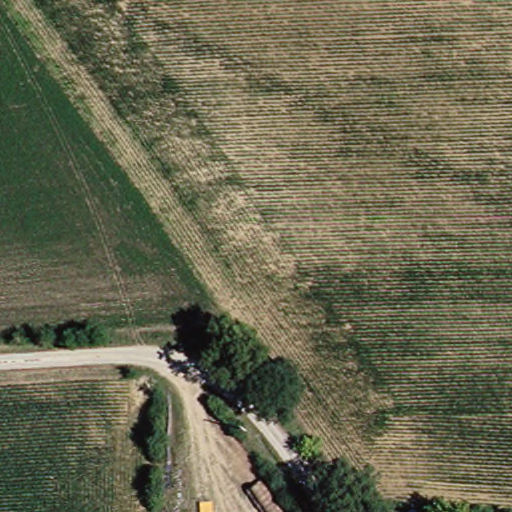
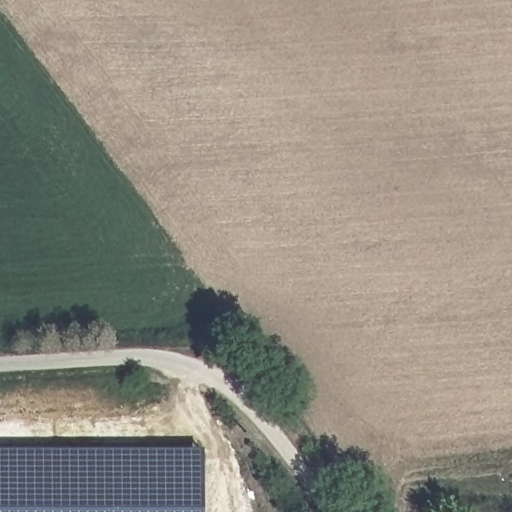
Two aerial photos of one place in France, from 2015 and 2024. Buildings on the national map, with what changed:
new [(203,512),(0,512),(0,448),(203,450),(203,512)]

